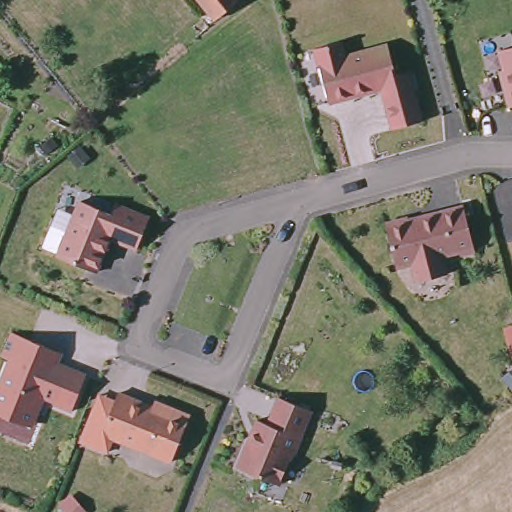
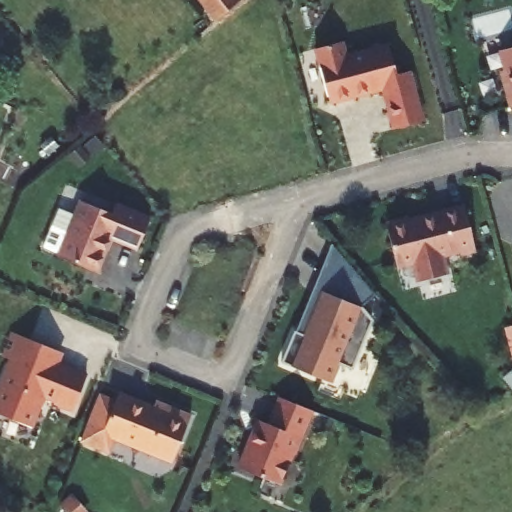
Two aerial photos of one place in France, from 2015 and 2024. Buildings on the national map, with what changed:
unchanged [(214,19),(199,0),(238,0),(214,19)]
unchanged [(348,53),(389,42),(397,72),(406,70),(409,69),(412,78),(423,119),(394,126),(384,87),(331,100),(317,47),(344,39),(348,53)]
unchanged [(501,68),(505,67),(501,48),(512,45),(512,105),(510,105),(501,68)]
unchanged [(104,247),(94,270),(57,255),(80,200),(109,213),(114,202),(147,215),(134,245),(111,236),(106,248),(104,247)]
unchanged [(474,250),(459,253),(458,250),(440,254),(444,273),(416,280),(411,262),(394,265),(383,221),(406,216),(407,218),(462,205),(474,250)]
new [(337,296),(311,286),(329,241),(349,265),(337,296)]
new [(359,305),(369,318),(349,367),(328,359),(319,379),(277,363),(290,330),(299,334),(318,289),(337,296),(349,265),(373,292),(359,305)]
unchanged [(13,420),(0,415),(0,381),(8,360),(0,357),(0,352),(8,332),(42,345),(58,351),(53,363),(83,375),(70,410),(51,403),(39,398),(33,414),(28,426),(13,420)]
unchanged [(168,462),(99,434),(115,392),(163,411),(165,405),(187,414),(168,462)]
unchanged [(296,437),(299,438),(293,454),(289,456),(278,484),(236,468),(246,443),(250,441),(253,434),(251,430),(254,420),(265,425),(276,398),(307,410),(296,437)]

